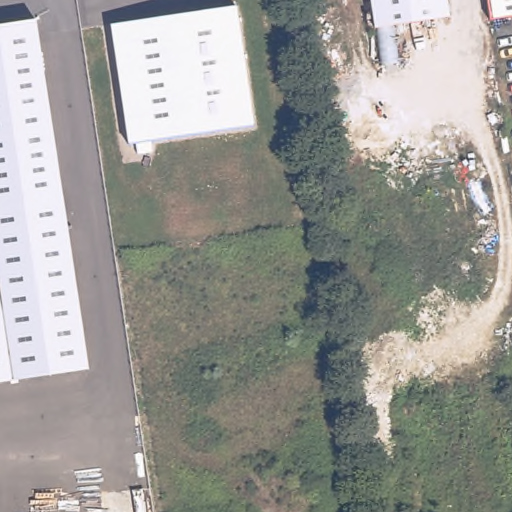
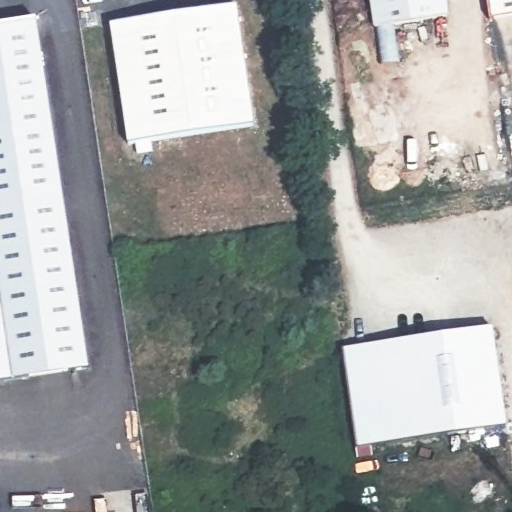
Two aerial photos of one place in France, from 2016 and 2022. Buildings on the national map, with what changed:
unchanged [(137,143),(130,144),(110,20),(231,0),(234,0),(254,122),(153,140),(155,150),(139,152),(137,143)]
unchanged [(379,37),(373,0),(449,0),(453,26),(379,37)]
unchanged [(486,0),(512,0),(512,15),(489,18),(486,0)]
unchanged [(31,19),(80,305),(91,367),(0,384),(0,24),(31,19)]
new [(344,347),(492,326),(507,426),(357,447),(344,347)]

